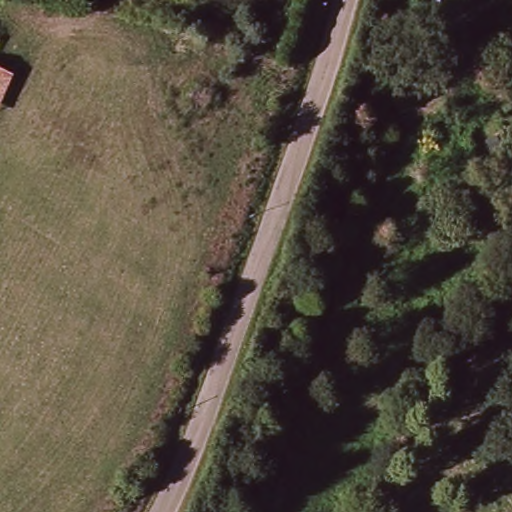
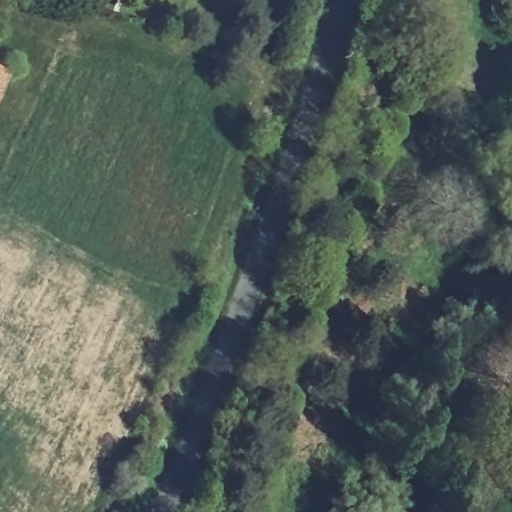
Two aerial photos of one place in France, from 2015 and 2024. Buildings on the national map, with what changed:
unchanged [(0,91),(0,72),(6,75),(0,91)]

